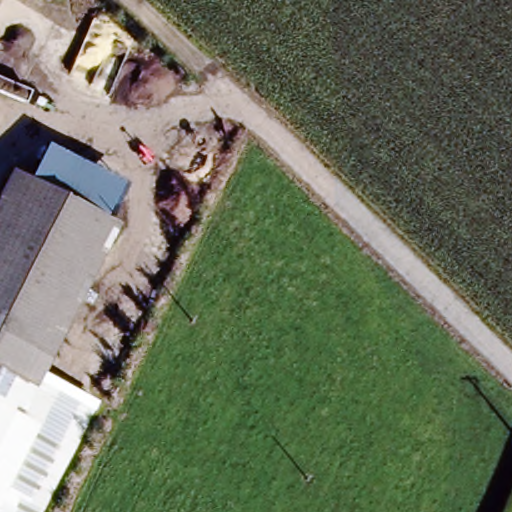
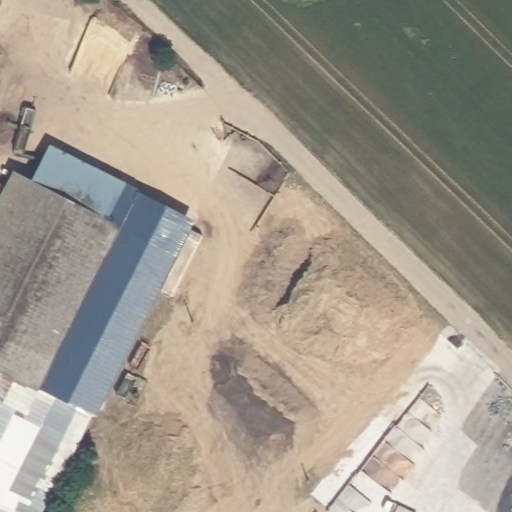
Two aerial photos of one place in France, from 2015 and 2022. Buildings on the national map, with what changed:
unchanged [(39,180),(54,147),(127,186),(113,222),(122,227),(40,385),(0,366),(0,208),(20,171),(39,180)]
new [(194,220),(95,417),(92,413),(40,385),(122,227),(113,222),(127,186),(194,220)]
unchanged [(92,413),(42,512),(0,512),(0,366),(40,385),(92,413)]

